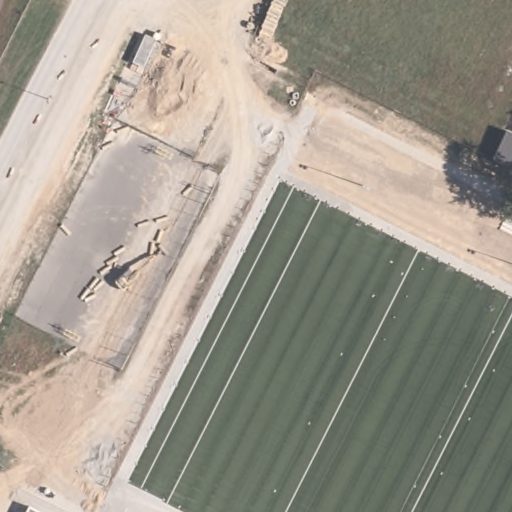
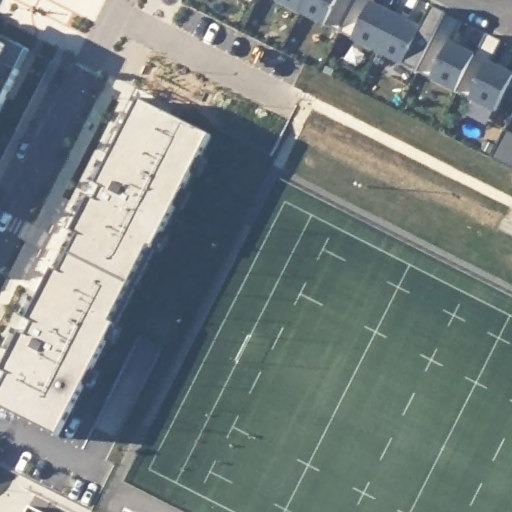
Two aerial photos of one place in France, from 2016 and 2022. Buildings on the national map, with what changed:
new [(301,12),(277,0),(308,0),(301,12)]
new [(301,12),(308,0),(357,0),(340,32),(301,12)]
new [(357,0),(376,0),(374,3),(398,16),(380,52),(340,32),(357,0)]
new [(380,52),(398,16),(422,28),(434,6),(449,13),(419,72),(380,52)]
new [(449,13),(463,21),(452,43),(477,55),(458,92),(419,72),(449,13)]
unchanged [(0,111),(0,33),(31,49),(0,111)]
new [(503,41),(491,63),(512,73),(512,83),(497,112),(458,92),(488,33),(503,41)]
new [(13,376),(4,371),(141,101),(211,137),(154,251),(150,249),(113,323),(116,325),(60,436),(0,407),(0,400),(13,376)]
unchanged [(512,131),(512,166),(492,157),(507,128),(512,131)]
unchanged [(40,512),(26,512),(28,506),(40,512)]

